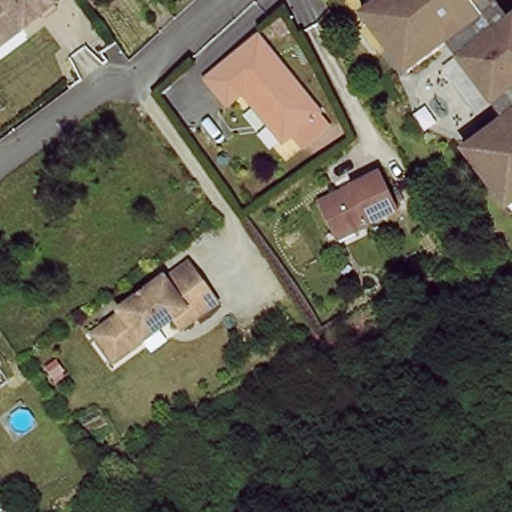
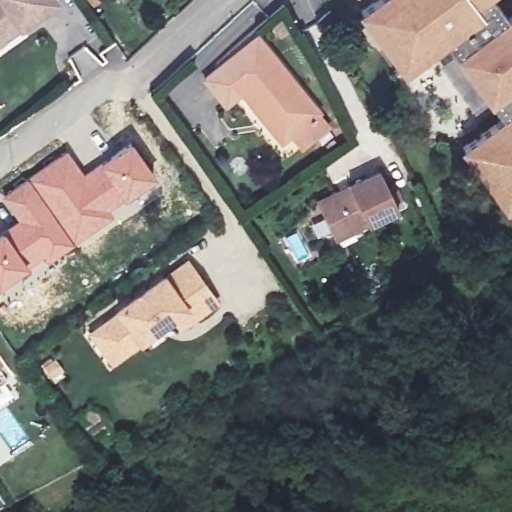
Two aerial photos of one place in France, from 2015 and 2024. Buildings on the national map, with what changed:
unchanged [(59,6),(24,32),(0,49),(0,0),(54,0),(59,6)]
unchanged [(505,20),(512,16),(512,194),(467,138),(500,111),(444,39),(404,69),(357,8),(368,0),(488,0),(505,20)]
unchanged [(257,32),(331,124),(301,149),(290,134),(282,140),(244,91),(224,104),(202,78),(257,32)]
new [(0,198),(0,197),(67,149),(83,171),(131,140),(157,176),(111,210),(114,215),(46,262),(44,259),(0,287),(0,231),(16,219),(0,198)]
unchanged [(333,236),(316,201),(378,171),(401,211),(373,225),(338,245),(333,236)]
unchanged [(87,328),(101,318),(112,309),(107,306),(155,271),(159,275),(184,259),(211,298),(171,326),(159,321),(133,340),(110,358),(87,328)]

